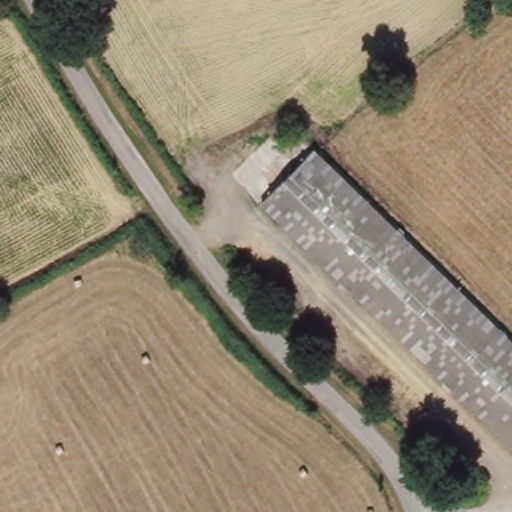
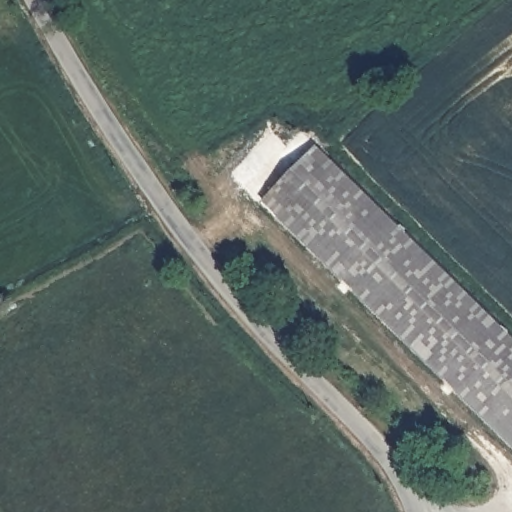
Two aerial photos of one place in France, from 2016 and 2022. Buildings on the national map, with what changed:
unchanged [(512,436),(266,195),(319,141),(512,330),(512,436)]

